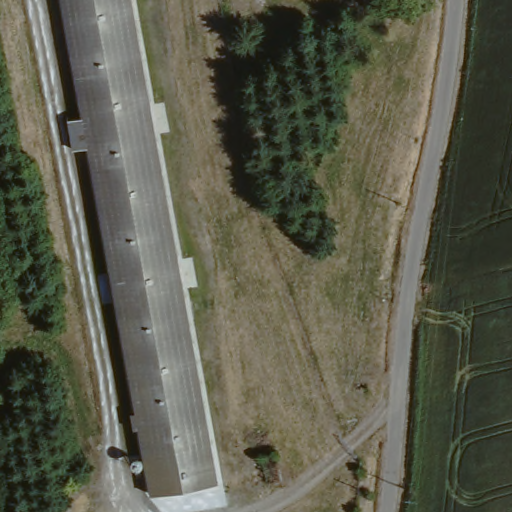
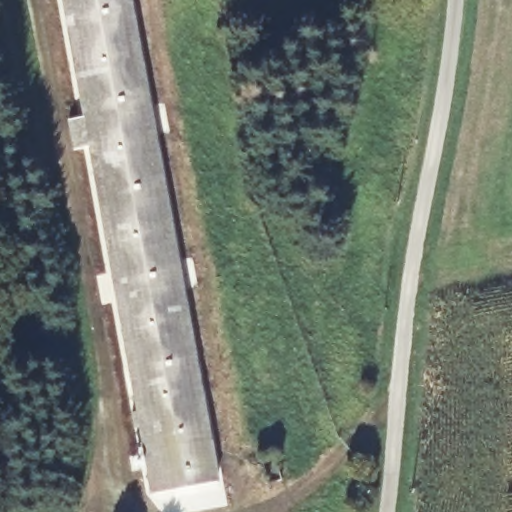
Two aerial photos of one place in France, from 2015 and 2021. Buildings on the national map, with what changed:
unchanged [(225,474),(153,491),(94,147),(77,151),(71,115),(87,112),(66,0),(141,0),(225,474)]

